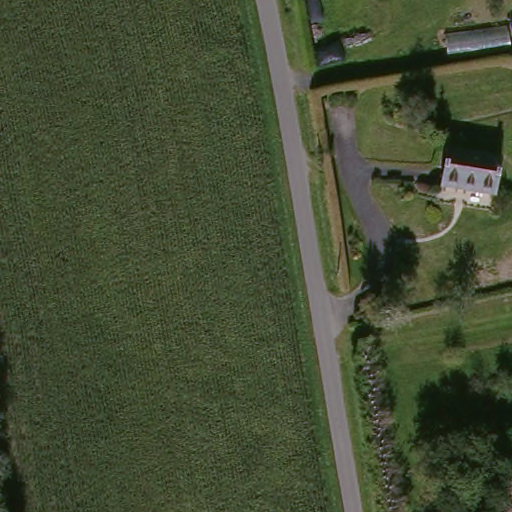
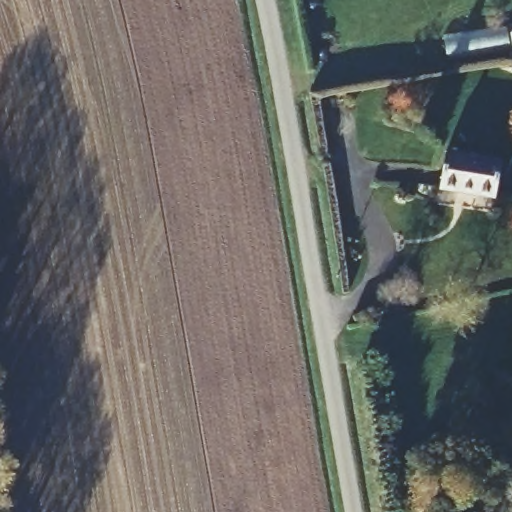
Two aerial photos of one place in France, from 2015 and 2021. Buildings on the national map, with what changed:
unchanged [(511,54),(512,29),(512,53),(511,54)]
unchanged [(501,160),(494,194),(441,185),(446,151),(501,160)]

